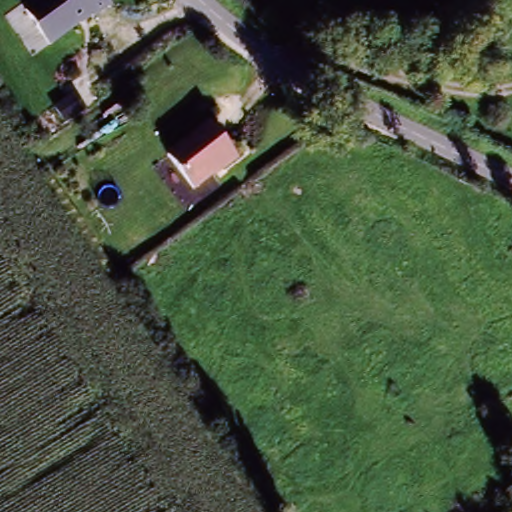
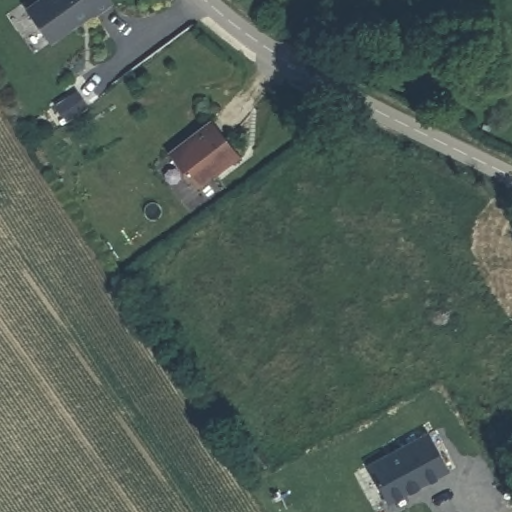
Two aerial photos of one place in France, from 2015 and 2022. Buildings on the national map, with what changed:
unchanged [(33,0),(114,0),(55,40),(25,6),(33,0)]
unchanged [(199,182),(174,148),(215,118),(240,153),(199,182)]
new [(448,472),(387,503),(367,465),(427,432),(448,472)]

